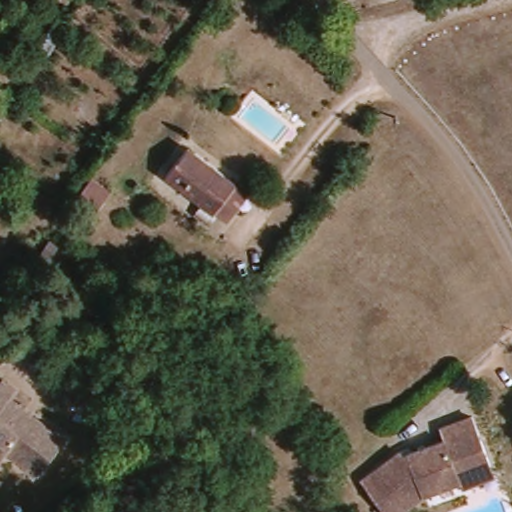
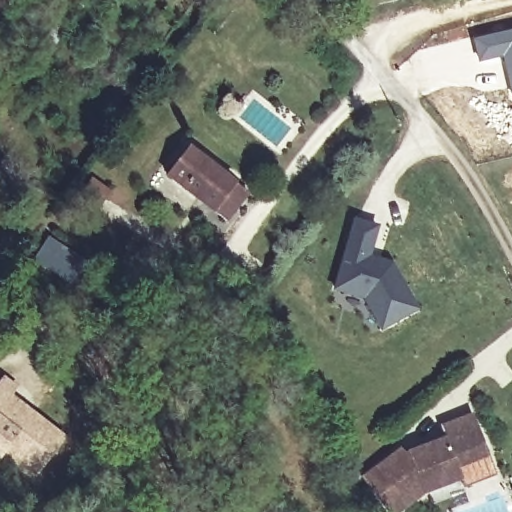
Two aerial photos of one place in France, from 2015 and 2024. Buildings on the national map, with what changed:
new [(511,99),(500,57),(477,63),(472,37),(512,28),(512,99),(511,99)]
unchanged [(230,202),(219,216),(159,170),(181,142),(228,179),(240,188),(230,202)]
unchanged [(95,180),(112,192),(108,198),(97,214),(80,201),(90,186),(95,180)]
new [(371,257),(392,262),(421,308),(384,329),(366,298),(334,289),(356,218),(380,225),(371,257)]
unchanged [(53,261),(57,264),(51,273),(37,264),(52,242),(62,248),(53,261)]
unchanged [(20,389),(13,397),(29,409),(36,415),(68,439),(41,474),(10,450),(3,458),(0,456),(0,385),(5,378),(20,389)]
unchanged [(462,482),(459,475),(423,489),(392,512),(389,512),(361,475),(400,446),(403,450),(444,435),(439,423),(471,411),(488,455),(494,470),(470,479),(462,482)]
unchanged [(124,512),(122,512),(123,511),(124,512)]

